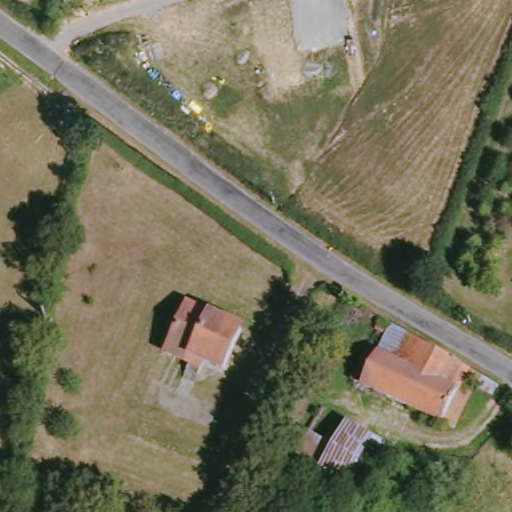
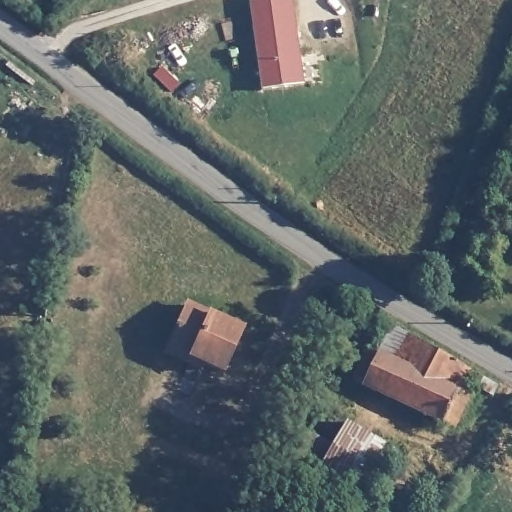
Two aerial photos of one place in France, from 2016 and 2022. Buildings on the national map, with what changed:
new [(262,89),(251,0),(293,0),(304,82),(262,89)]
unchanged [(219,368),(199,359),(195,365),(163,351),(184,302),(237,326),(219,368)]
unchanged [(500,385),(494,393),(467,378),(462,385),(475,392),(457,424),(354,365),(372,332),(385,338),(395,322),(500,385)]
unchanged [(395,446),(374,485),(354,474),(340,500),(290,473),(304,448),(325,460),(347,420),(395,446)]

